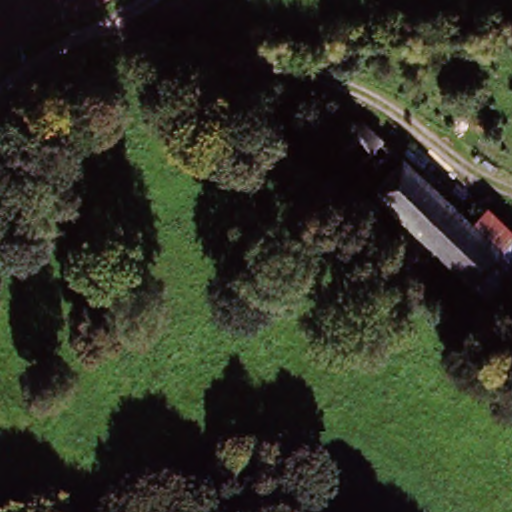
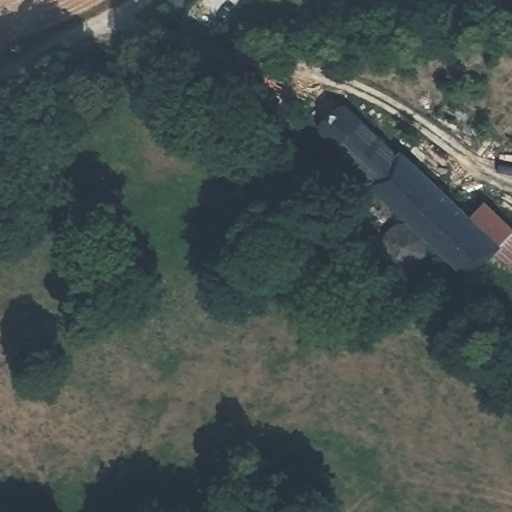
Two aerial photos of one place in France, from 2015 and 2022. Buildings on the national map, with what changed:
unchanged [(496,243),(480,264),(473,273),(433,234),(432,233),(431,232),(429,231),(429,230),(428,229),(427,229),(427,228),(426,227),(424,226),(423,224),(422,223),(421,222),(420,222),(419,221),(418,220),(418,219),(414,217),(341,147),(366,120),(476,223),(496,243)]
unchanged [(491,206),(512,225),(512,289),(502,300),(473,273),(480,264),(496,243),(476,223),(491,206)]
unchanged [(418,220),(419,221),(420,222),(421,222),(422,223),(423,224),(424,226),(426,227),(427,228),(427,229),(428,229),(429,230),(429,231),(431,232),(432,233),(433,234),(433,236),(434,236),(434,237),(434,238),(434,240),(434,242),(434,243),(434,244),(434,245),(434,246),(433,246),(433,247),(433,248),(433,249),(433,250),(432,250),(432,251),(431,252),(431,253),(430,254),(429,254),(429,255),(429,256),(428,256),(428,257),(427,258),(426,259),(425,259),(424,260),(423,261),(422,261),(421,262),(420,262),(419,263),(418,263),(417,263),(416,264),(415,264),(414,264),(413,264),(412,264),(411,264),(410,264),(409,264),(408,264),(407,264),(406,264),(406,263),(405,263),(404,263),(403,263),(403,262),(402,262),(401,262),(401,261),(400,261),(399,261),(399,260),(398,260),(398,259),(397,259),(396,258),(395,257),(394,257),(394,256),(393,255),(393,254),(392,254),(392,253),(391,252),(391,251),(390,250),(390,249),(389,249),(389,248),(389,247),(389,246),(389,245),(389,244),(389,243),(389,242),(389,241),(388,241),(389,241),(389,240),(389,239),(389,238),(389,237),(389,236),(389,235),(389,234),(389,233),(390,233),(390,232),(391,231),(391,230),(392,230),(392,229),(392,228),(393,228),(393,227),(394,226),(394,225),(395,225),(396,224),(397,223),(398,223),(398,222),(399,222),(399,221),(401,221),(401,220),(402,220),(403,220),(403,219),(404,219),(405,219),(406,219),(407,219),(407,218),(408,218),(409,218),(410,218),(411,218),(412,218),(413,218),(414,218),(415,218),(416,219),(418,219),(418,220)]

